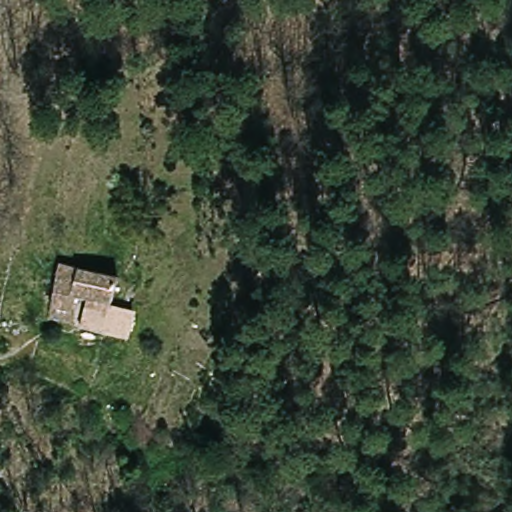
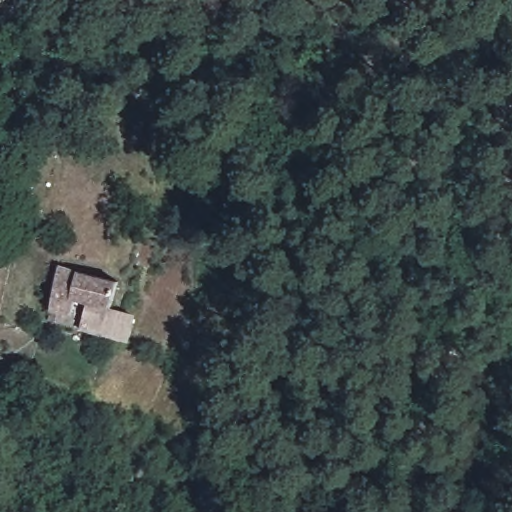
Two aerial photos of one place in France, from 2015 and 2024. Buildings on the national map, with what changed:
unchanged [(108,337),(83,328),(90,306),(75,301),(68,323),(49,316),(66,265),(123,285),(108,337)]

